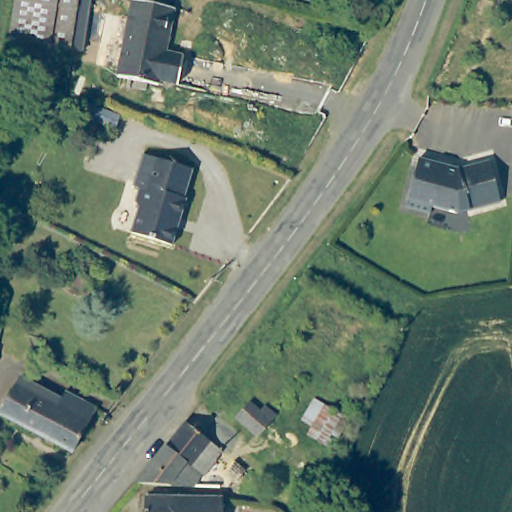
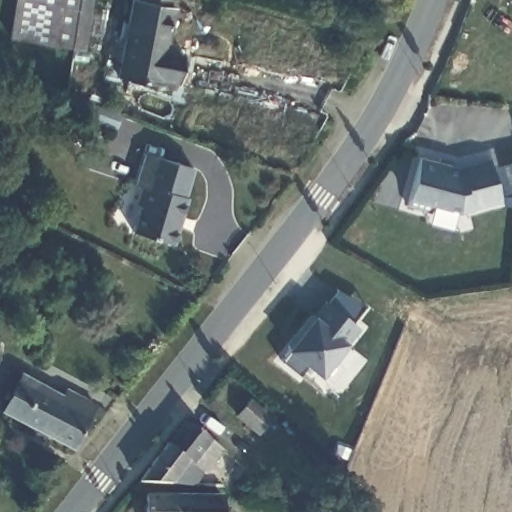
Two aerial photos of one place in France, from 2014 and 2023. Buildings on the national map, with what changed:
unchanged [(69,45),(8,35),(14,0),(87,0),(79,47),(72,46),(69,45)]
unchanged [(170,1),(177,1),(167,47),(185,51),(177,82),(118,69),(133,0),(170,0),(170,1)]
unchanged [(456,162),(487,154),(497,195),(455,205),(432,198),(430,206),(407,199),(418,151),(456,162)]
unchanged [(192,170),(182,215),(177,218),(178,231),(174,245),(133,233),(140,206),(135,205),(150,157),(192,170)]
new [(280,360),(286,352),(314,315),(325,301),(327,302),(337,291),(363,304),(350,321),(358,327),(346,342),(320,375),(305,365),(299,373),(280,360)]
unchanged [(62,397),(65,394),(95,408),(75,448),(5,415),(21,378),(62,397)]
demolished [(324,405),(313,425),(302,420),(312,398),(324,405)]
unchanged [(257,413),(268,421),(257,436),(233,417),(244,403),(257,413)]
unchanged [(227,446),(210,470),(206,467),(195,481),(140,480),(159,455),(189,418),(227,446)]
unchanged [(187,494),(225,496),(224,512),(146,512),(147,490),(187,491),(187,494)]

